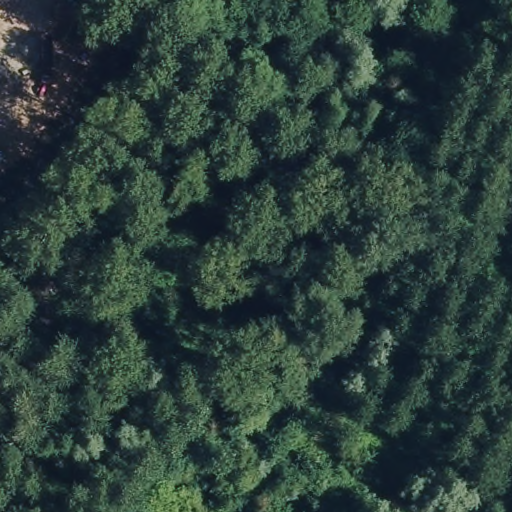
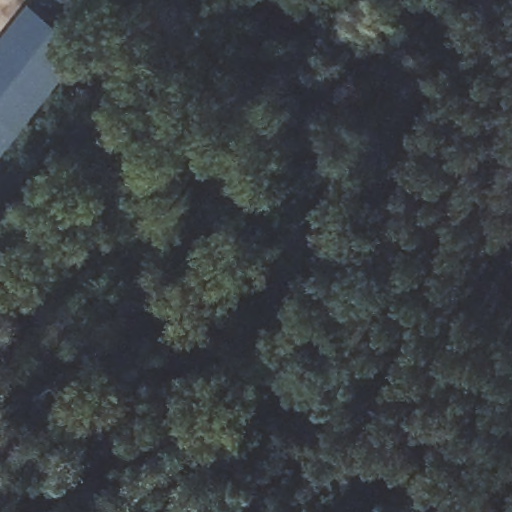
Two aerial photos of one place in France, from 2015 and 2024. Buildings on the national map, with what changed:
new [(86,52),(0,163),(0,50),(30,11),(86,52)]

